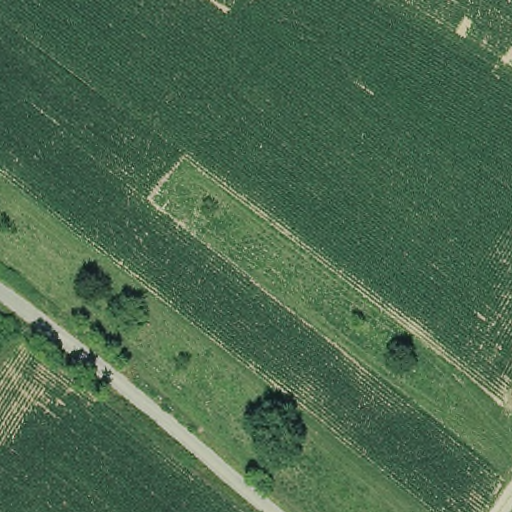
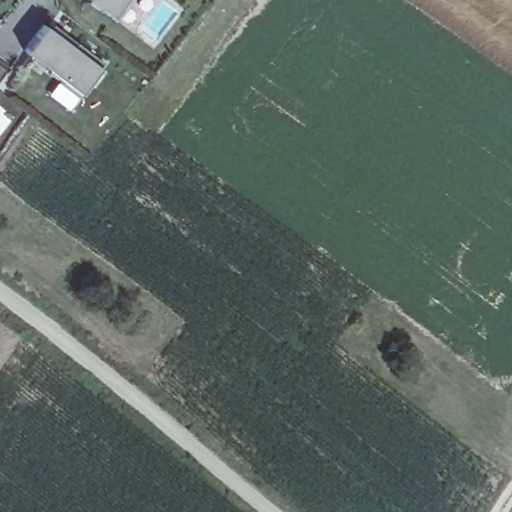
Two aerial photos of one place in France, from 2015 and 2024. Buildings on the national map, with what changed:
new [(87,0),(124,0),(110,18),(87,0)]
new [(48,29),(52,23),(104,62),(100,68),(80,94),(23,51),(43,25),(48,29)]

